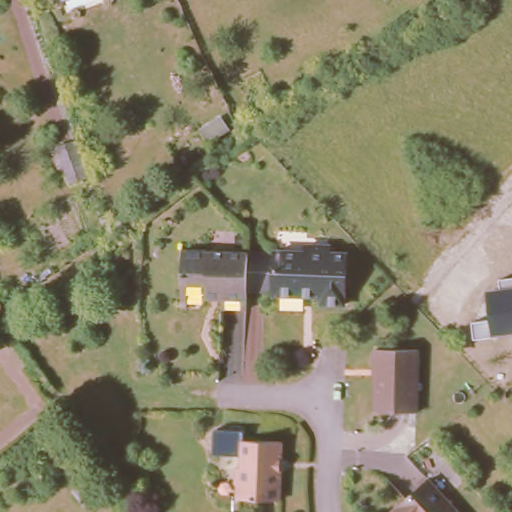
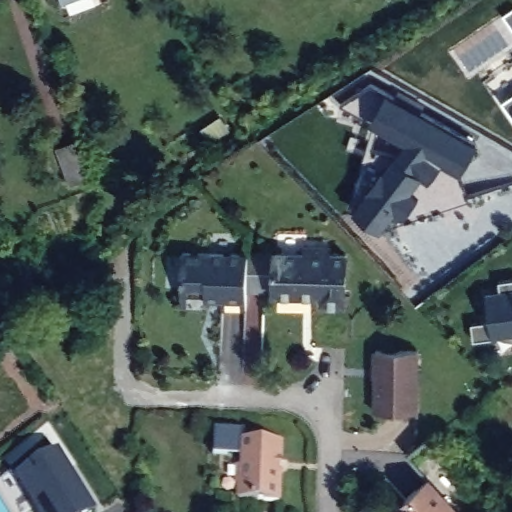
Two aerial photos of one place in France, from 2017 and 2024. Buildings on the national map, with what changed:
new [(460,175),(442,163),(429,182),(422,178),(411,192),(419,197),(404,219),(394,212),(380,233),(353,211),(355,206),(349,205),(365,163),(382,169),(385,171),(405,143),(370,122),(372,119),(342,103),(372,83),(389,91),(396,95),(400,88),(427,104),(423,110),(479,143),(460,175)]
new [(512,94),(512,118),(502,101),(512,94)]
unchanged [(67,150),(82,145),(95,181),(80,186),(67,150)]
unchanged [(214,296),(197,296),(197,293),(182,292),(182,304),(180,307),(175,307),(175,291),(177,248),(243,252),(241,290),(241,297),(240,309),(214,308),(214,296)]
unchanged [(270,249),(269,291),(241,290),(243,252),(243,248),(270,249)]
unchanged [(342,252),(341,302),(316,301),(316,295),(269,293),(269,291),(270,249),(342,252)]
unchanged [(493,336),(475,339),(474,322),(492,319),(487,292),(501,290),(500,280),(512,279),(512,334),(493,336)]
unchanged [(411,353),(410,415),(367,413),(369,351),(411,353)]
unchanged [(280,439),(279,500),(236,499),(236,483),(232,484),(232,465),(240,465),(240,437),(280,439)]
new [(58,452),(97,512),(36,512),(16,479),(58,452)]
unchanged [(459,512),(395,512),(390,506),(423,475),(459,512)]

